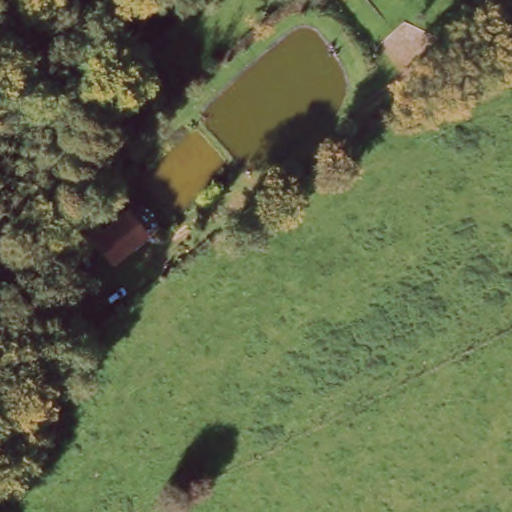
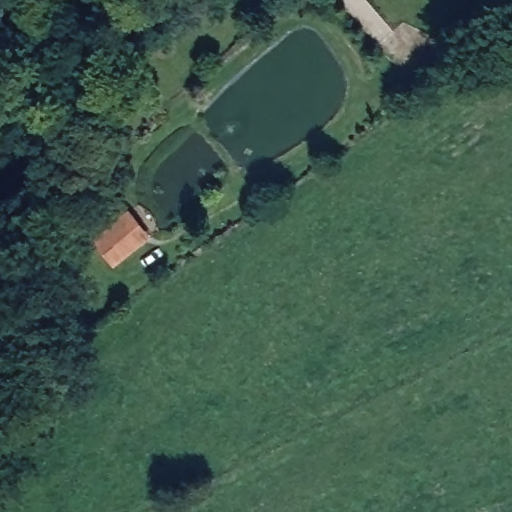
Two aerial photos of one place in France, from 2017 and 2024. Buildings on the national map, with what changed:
unchanged [(82,249),(114,227),(122,221),(140,246),(132,252),(100,274),(82,249)]

